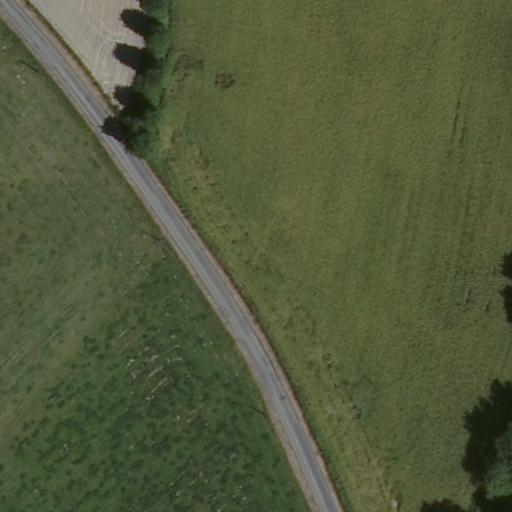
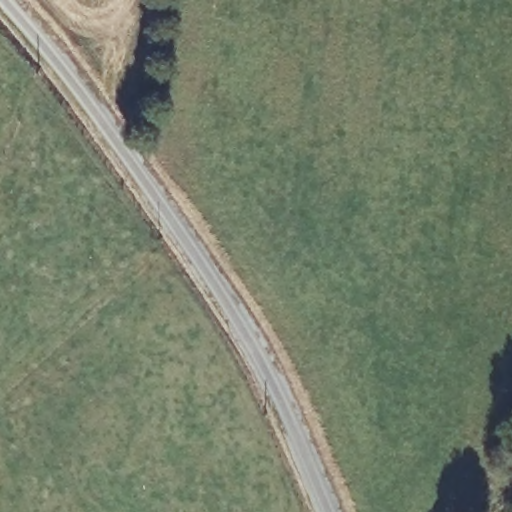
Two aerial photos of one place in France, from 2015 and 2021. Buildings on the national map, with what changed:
[]

